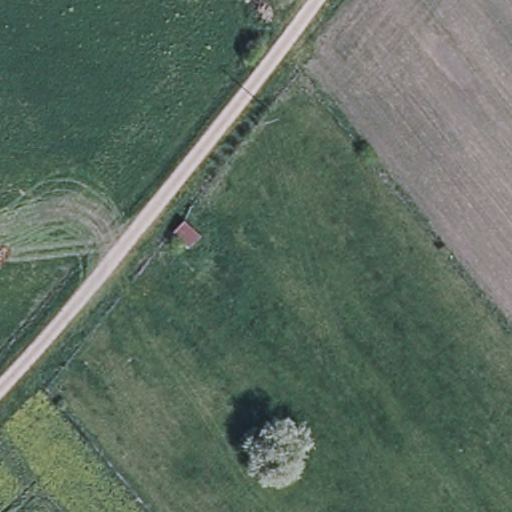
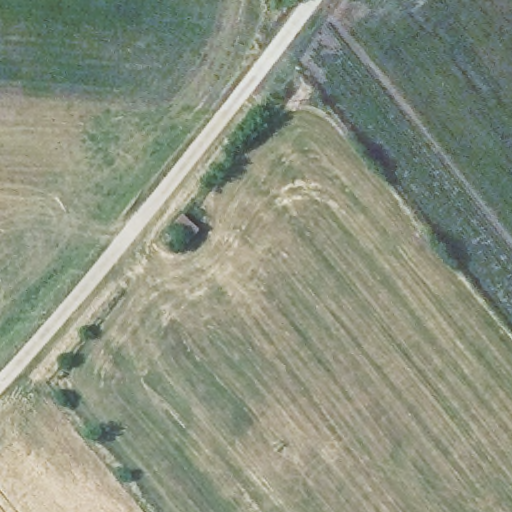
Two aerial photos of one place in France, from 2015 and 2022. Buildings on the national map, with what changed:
unchanged [(176,217),(184,225),(194,234),(180,248),(163,232),(176,217)]

